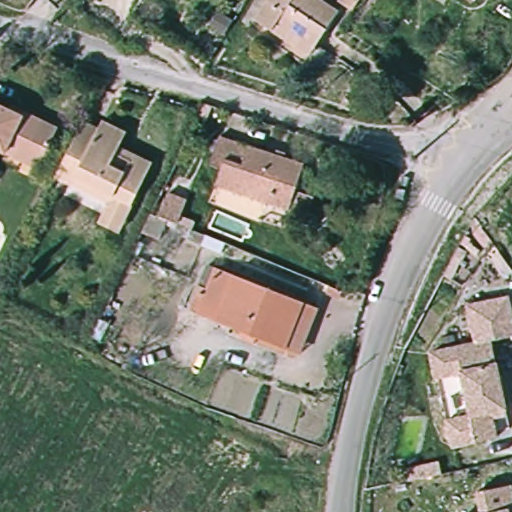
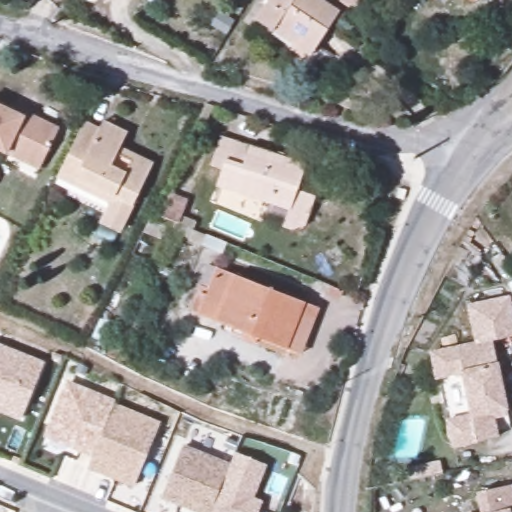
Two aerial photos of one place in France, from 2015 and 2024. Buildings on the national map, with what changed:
unchanged [(317,51),(286,31),(280,41),(257,24),(274,0),(314,0),(340,17),(317,51)]
unchanged [(15,110),(53,130),(33,169),(0,151),(0,110),(12,116),(15,110)]
unchanged [(85,125),(98,132),(103,124),(122,133),(115,150),(151,171),(118,240),(100,229),(110,205),(60,177),(85,125)]
unchanged [(299,201),(225,188),(228,170),(215,166),(222,140),(307,154),(299,201)]
unchanged [(235,272),(323,303),(305,358),(193,310),(213,263),(235,272)]
unchanged [(506,296),(512,323),(512,335),(490,340),(507,412),(492,416),(497,436),(453,445),(450,439),(447,433),(445,421),(470,415),(460,372),(435,377),(430,352),(475,342),(466,305),(506,296)]
new [(21,416),(0,407),(0,343),(43,361),(21,416)]
new [(67,379),(112,398),(112,401),(91,450),(45,431),(67,379)]
new [(91,450),(112,401),(157,419),(131,481),(86,462),(91,450)]
new [(181,444),(227,463),(206,512),(201,512),(160,495),(181,444)]
new [(227,463),(232,450),(262,463),(248,497),(260,501),(255,512),(206,512),(227,463)]
unchanged [(415,481),(447,473),(450,486),(418,493),(415,481)]
unchanged [(477,493),(512,486),(512,488),(512,510),(510,511),(510,512),(482,512),(477,493)]

